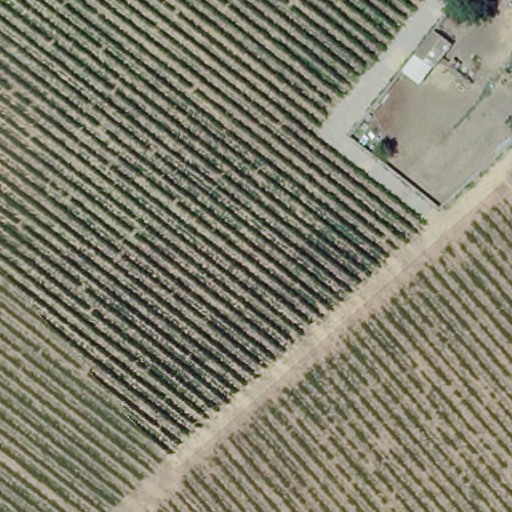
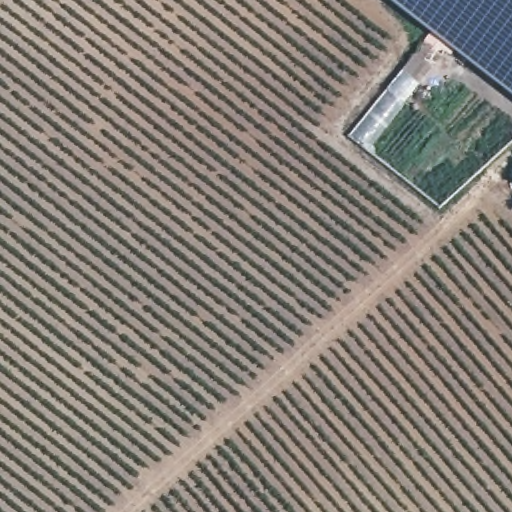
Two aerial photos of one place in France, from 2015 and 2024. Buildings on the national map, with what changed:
new [(390,0),(512,0),(512,95),(390,0)]

